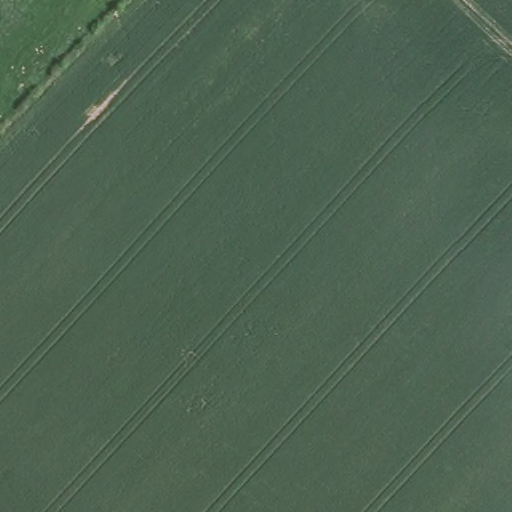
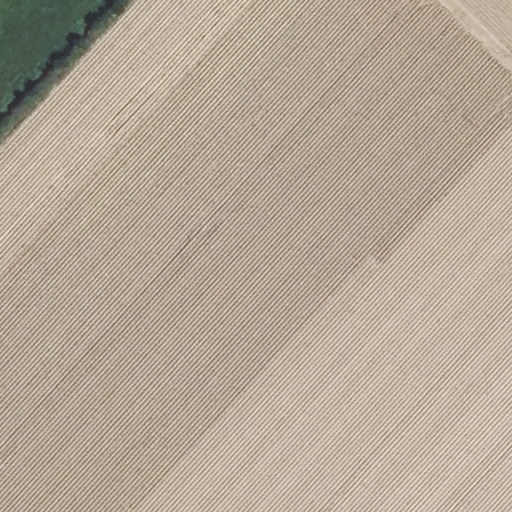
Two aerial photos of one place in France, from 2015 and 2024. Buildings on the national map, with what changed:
[]

